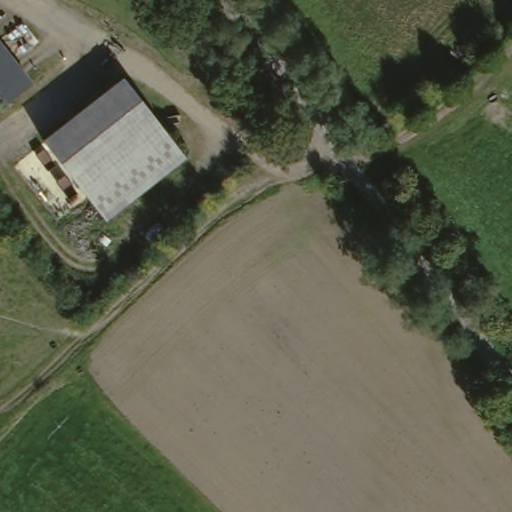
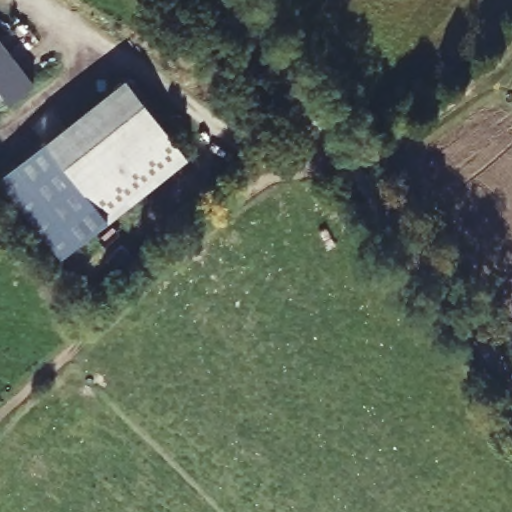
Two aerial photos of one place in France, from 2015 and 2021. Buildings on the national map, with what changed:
unchanged [(8,101),(1,97),(0,98),(0,43),(31,79),(8,101)]
unchanged [(130,80),(164,125),(82,184),(48,138),(130,80)]
unchanged [(164,125),(190,160),(108,219),(82,184),(164,125)]
new [(108,219),(59,258),(0,182),(0,176),(48,138),(82,184),(108,219)]

